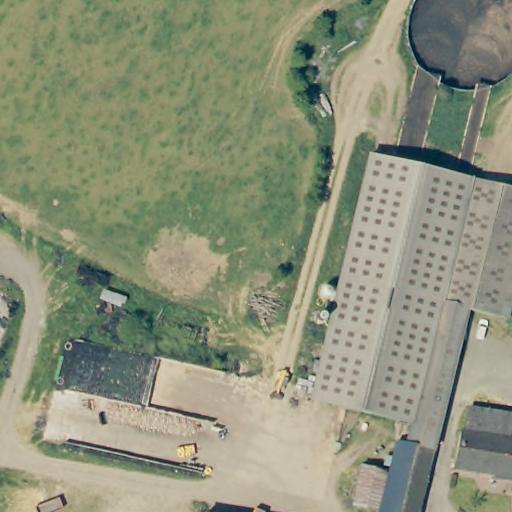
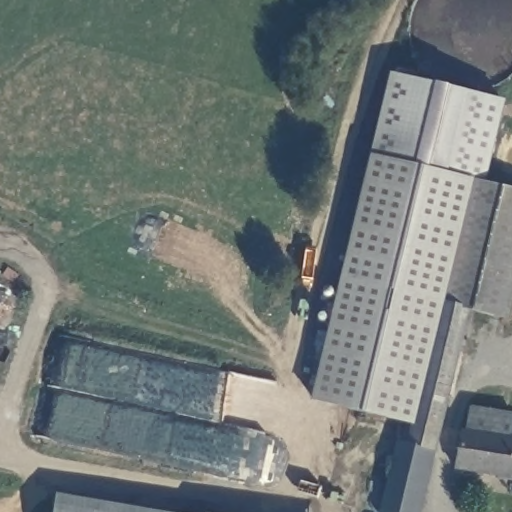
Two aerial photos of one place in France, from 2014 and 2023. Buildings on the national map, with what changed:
new [(370,155),(391,72),(505,100),(484,181),(370,155)]
unchanged [(370,155),(512,188),(512,303),(508,320),(467,308),(440,302),(411,423),(311,400),(370,155)]
unchanged [(389,470),(396,442),(406,444),(411,423),(440,302),(467,308),(418,512),(379,512),(380,510),(389,470)]
unchanged [(474,406),(512,413),(512,437),(471,430),(474,406)]
unchanged [(466,431),(512,438),(512,476),(458,468),(466,431)]
new [(159,512),(54,512),(57,495),(159,512)]

